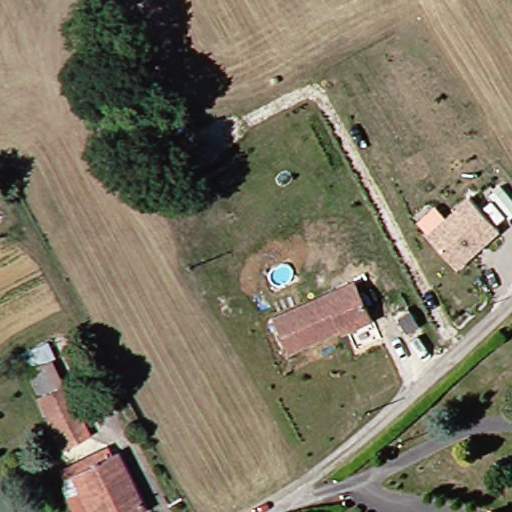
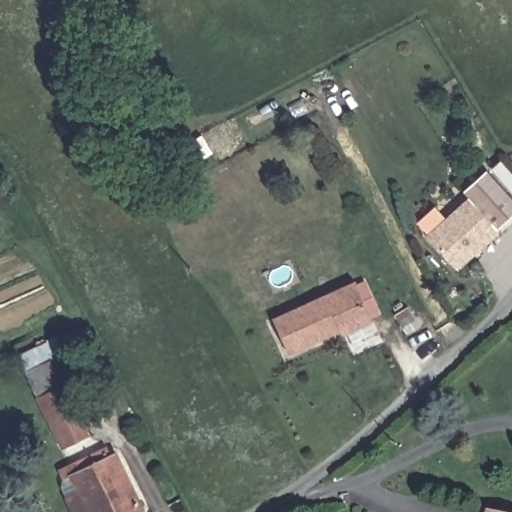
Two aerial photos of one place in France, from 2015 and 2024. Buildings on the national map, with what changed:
new [(468,196),(464,191),(487,170),(512,198),(512,215),(497,228),(468,196)]
unchanged [(426,235),(468,196),(497,228),(456,267),(426,235)]
unchanged [(355,278),(371,318),(345,331),(343,326),(289,351),(273,315),(355,278)]
unchanged [(62,451),(37,405),(60,392),(67,406),(81,399),(95,424),(80,431),(84,439),(62,451)]
unchanged [(114,456),(142,510),(137,512),(89,512),(71,479),(114,456)]

